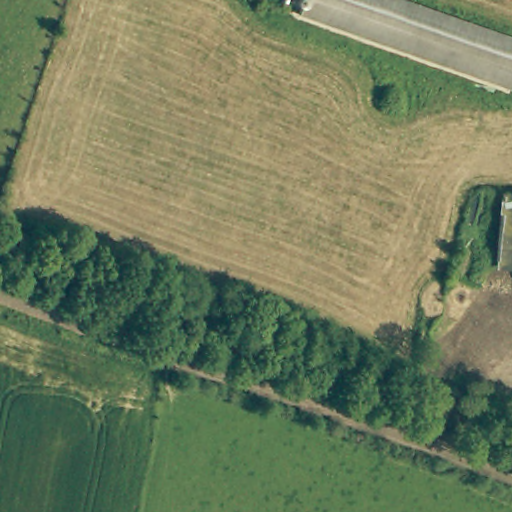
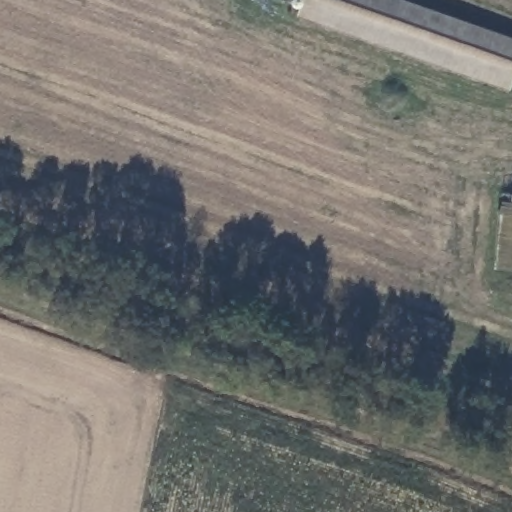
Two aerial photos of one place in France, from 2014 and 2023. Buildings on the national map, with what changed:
unchanged [(512,38),(512,46),(498,85),(288,8),(291,0),(406,0),(512,38)]

